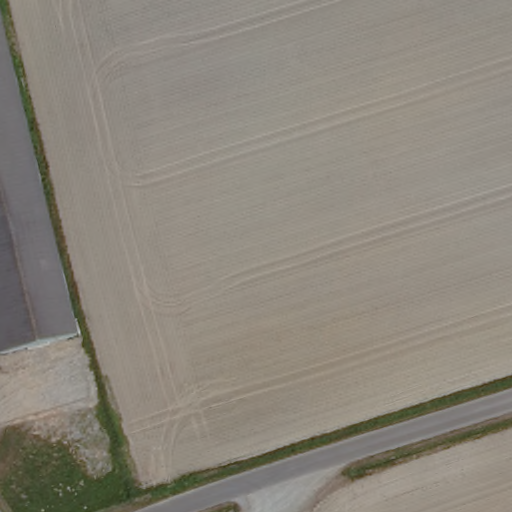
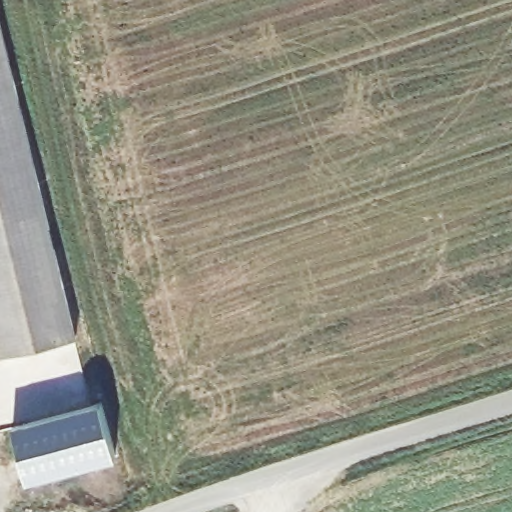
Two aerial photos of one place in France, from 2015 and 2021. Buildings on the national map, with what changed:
unchanged [(75,338),(0,355),(0,35),(75,338)]
new [(29,481),(13,424),(101,401),(115,456),(29,481)]

